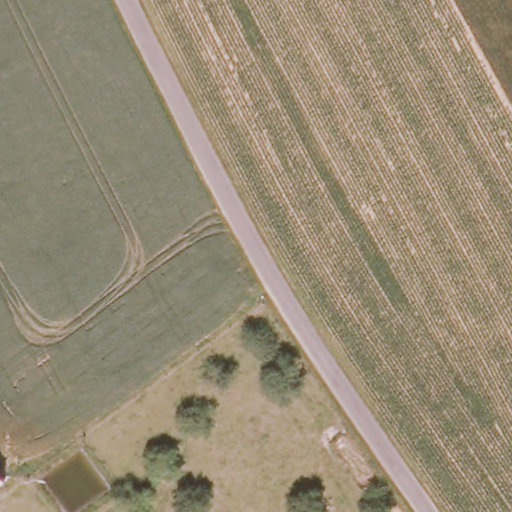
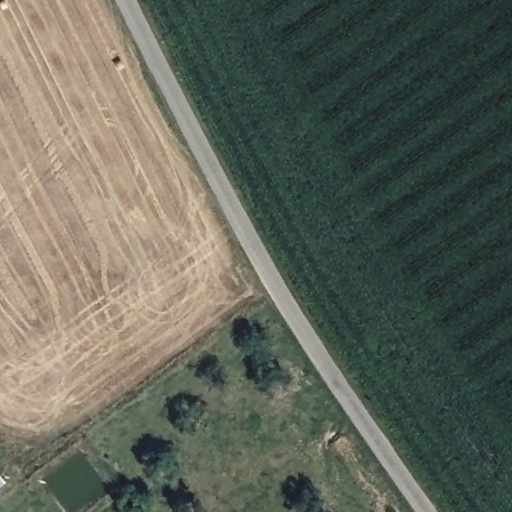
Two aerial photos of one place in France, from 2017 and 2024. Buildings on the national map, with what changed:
unchanged [(0,479),(0,471),(3,476),(0,479)]

